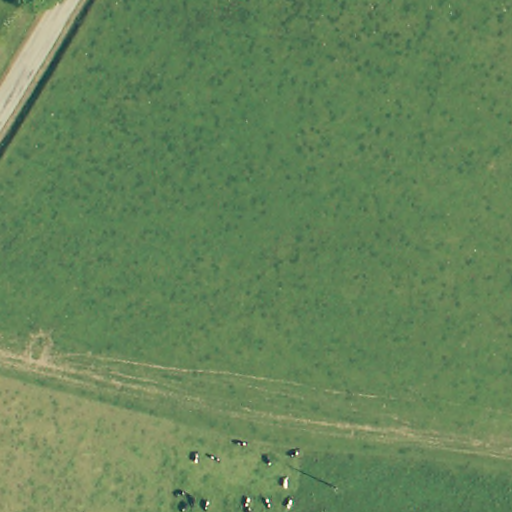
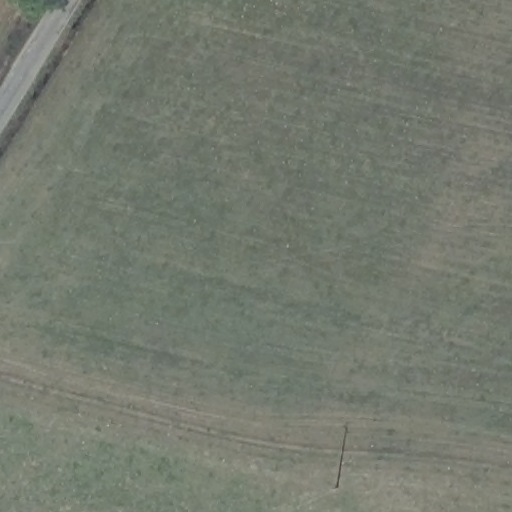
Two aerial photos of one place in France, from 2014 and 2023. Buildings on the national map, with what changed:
[]

